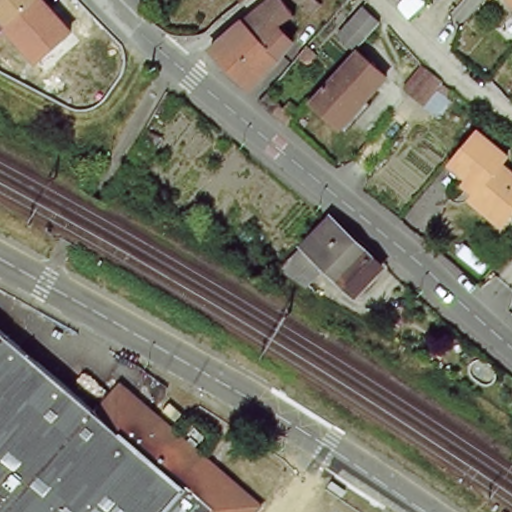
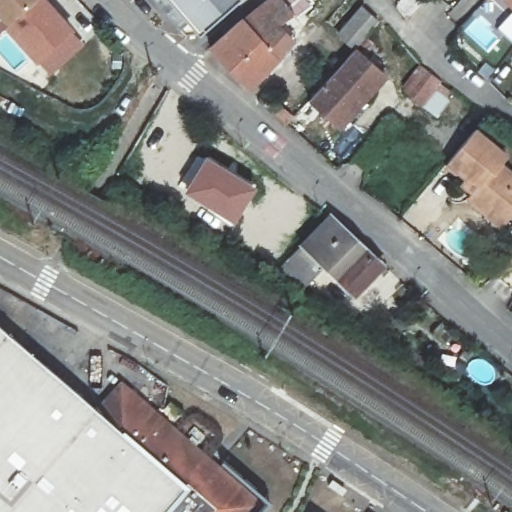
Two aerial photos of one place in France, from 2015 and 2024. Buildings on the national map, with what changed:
unchanged [(4,30),(0,34),(0,0),(40,0),(7,32),(4,30)]
unchanged [(40,0),(48,0),(76,32),(38,66),(7,32),(40,0)]
new [(199,34),(169,0),(238,0),(199,34)]
unchanged [(270,0),(280,0),(292,13),(277,25),(291,44),(247,86),(210,50),(270,0)]
demolished [(323,7),(315,19),(293,0),(316,0),(323,7)]
unchanged [(406,19),(393,4),(397,0),(411,0),(417,7),(406,19)]
unchanged [(375,6),(388,22),(375,37),(360,51),(345,37),(375,6)]
unchanged [(341,129),(311,102),(360,51),(388,79),(341,129)]
unchanged [(426,109),(415,100),(408,94),(429,69),(460,92),(455,97),(438,117),(426,109)]
unchanged [(291,124),(288,127),(261,102),(268,94),(285,108),(292,101),(303,111),(291,124)]
unchanged [(472,201),(477,195),(467,187),(470,182),(451,165),(460,156),(475,138),(479,133),(510,159),(503,167),(511,174),(512,174),(512,216),(510,219),(502,227),(488,215),(472,201)]
new [(206,157),(257,189),(233,224),(184,191),(206,157)]
unchanged [(332,212),(383,261),(356,289),(323,260),(310,272),(292,255),(332,212)]
unchanged [(116,432),(140,405),(165,427),(86,512),(0,512),(0,326),(116,432)]
unchanged [(121,384),(140,405),(116,432),(95,412),(121,384)]
unchanged [(210,512),(86,512),(165,427),(232,487),(210,512)]
unchanged [(260,512),(210,512),(232,487),(260,512)]

